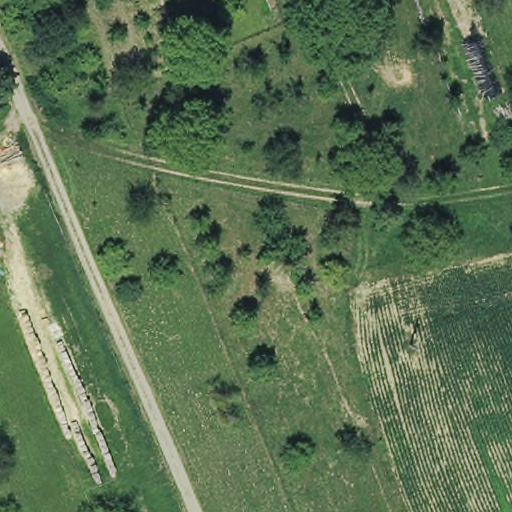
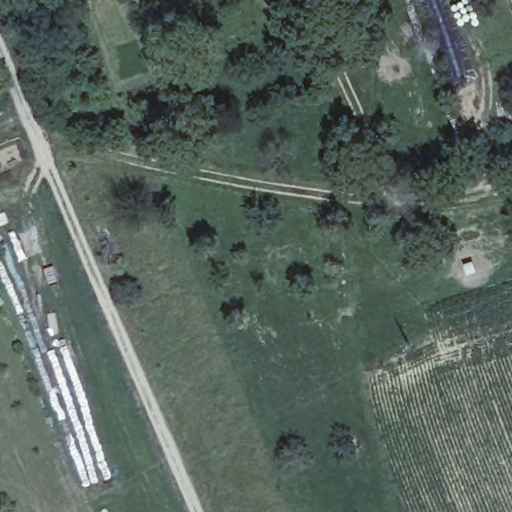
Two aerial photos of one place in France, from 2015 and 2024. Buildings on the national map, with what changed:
[]

